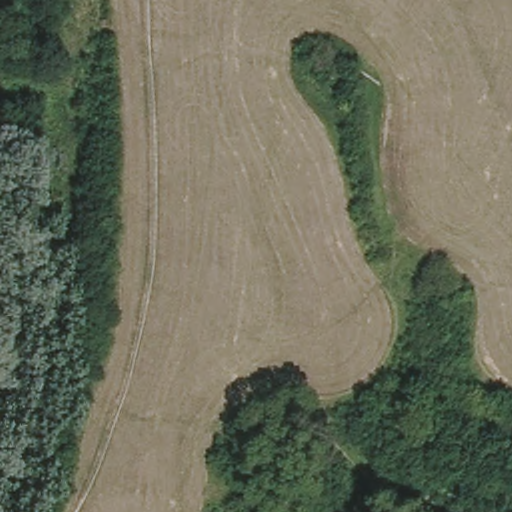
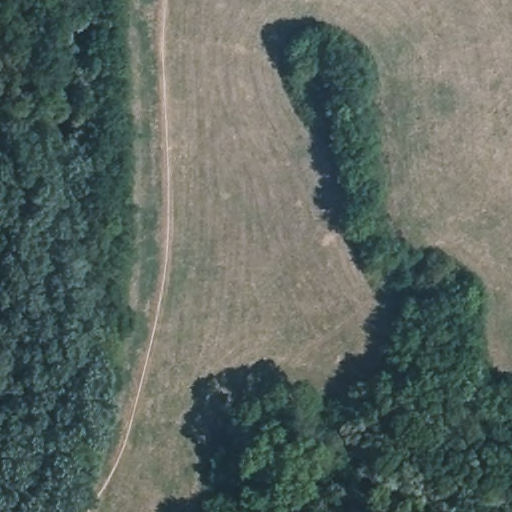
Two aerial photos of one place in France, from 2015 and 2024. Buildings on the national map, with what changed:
[]

